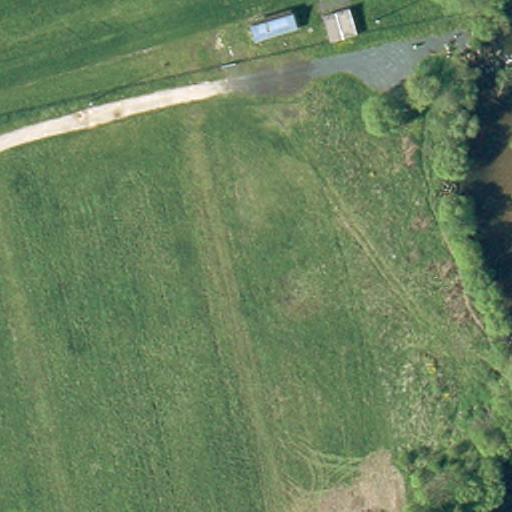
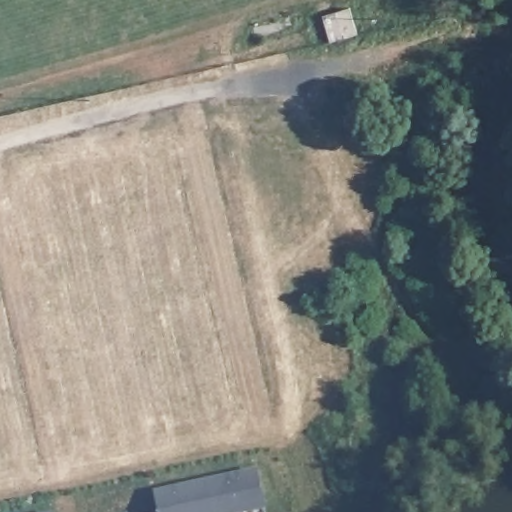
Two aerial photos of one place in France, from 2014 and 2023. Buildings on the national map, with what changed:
unchanged [(325,22),(341,17),(346,30),(328,36),(325,22)]
unchanged [(250,32),(288,19),(293,32),(253,44),(250,32)]
new [(258,466),(266,507),(242,512),(150,512),(157,511),(153,488),(258,466)]
new [(53,510),(54,512),(44,512),(53,510)]

